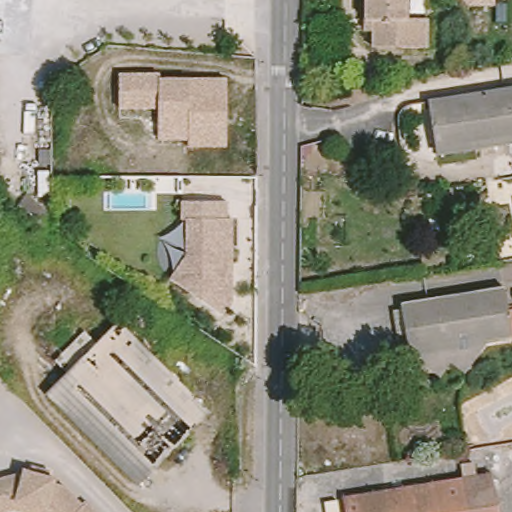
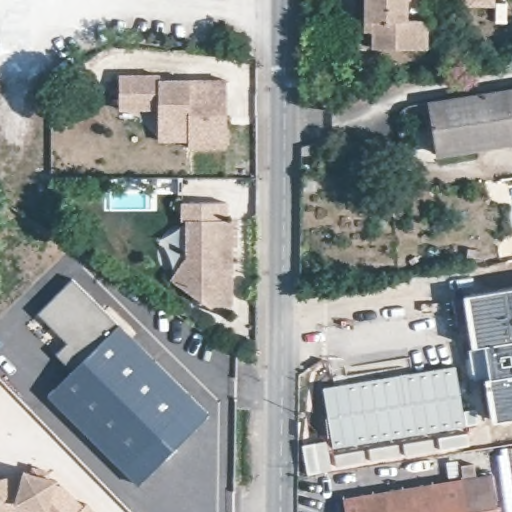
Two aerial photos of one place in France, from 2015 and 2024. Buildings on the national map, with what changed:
unchanged [(415,49),(372,49),(372,33),(363,31),(364,20),(365,0),(413,0),(412,21),(415,21),(426,21),(425,50),(415,49)]
unchanged [(148,116),(119,116),(118,106),(118,73),(158,73),(158,78),(225,78),(226,145),(188,145),(188,139),(169,140),(148,116)]
unchanged [(430,109),(512,95),(512,147),(438,160),(430,109)]
unchanged [(231,223),(230,307),(222,320),(169,284),(185,261),(186,223),(231,223)]
new [(120,329),(97,351),(85,338),(64,358),(56,352),(67,341),(38,312),(71,281),(120,329)]
new [(468,349),(462,293),(512,285),(512,417),(492,420),(486,385),(485,379),(485,376),(472,378),(468,349)]
demolished [(506,293),(509,313),(510,318),(512,331),(512,345),(490,348),(477,366),(468,379),(456,370),(430,374),(416,365),(413,346),(409,318),(408,309),(506,293)]
demolished [(509,313),(512,313),(512,331),(510,318),(509,313)]
unchanged [(138,489),(49,399),(68,381),(55,367),(85,338),(97,351),(120,329),(207,419),(138,489)]
new [(332,447),(322,388),(455,366),(460,395),(482,391),(487,421),(332,447)]
unchanged [(25,474),(26,470),(56,484),(53,489),(62,493),(82,512),(30,512),(19,508),(6,512),(0,512),(0,479),(21,473),(25,474)]
unchanged [(345,499),(496,474),(503,512),(347,512),(345,499)]
unchanged [(85,509),(89,512),(82,512),(85,509)]

